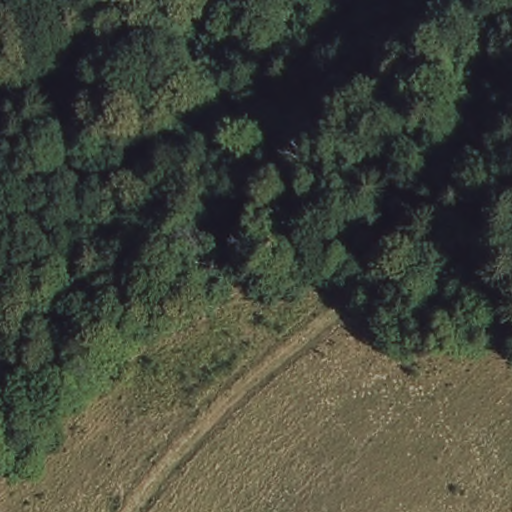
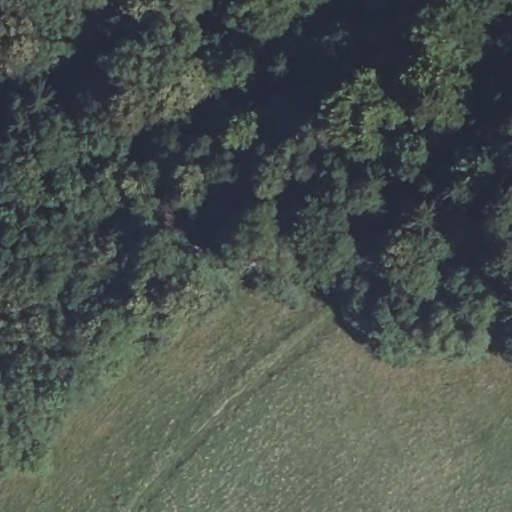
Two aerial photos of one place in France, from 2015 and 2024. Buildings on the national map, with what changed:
[]

